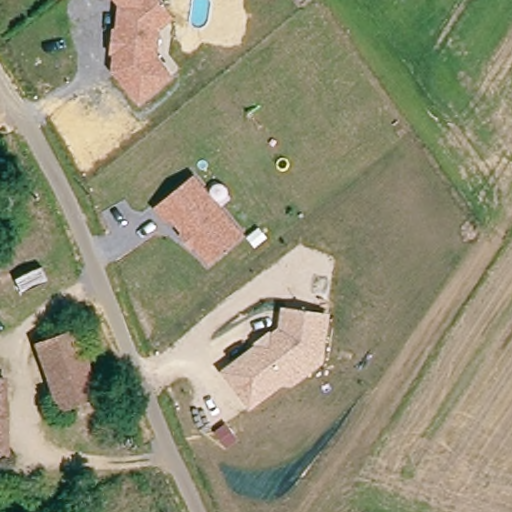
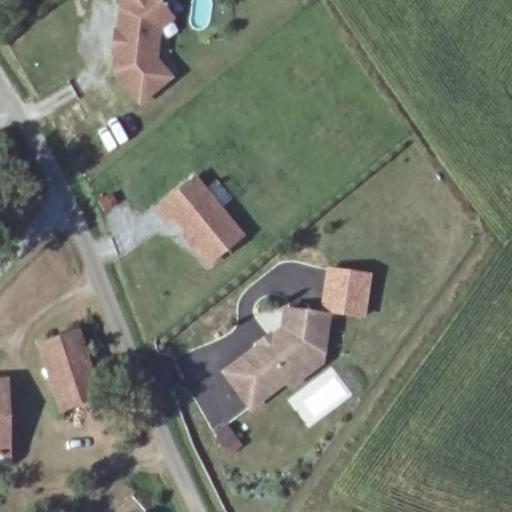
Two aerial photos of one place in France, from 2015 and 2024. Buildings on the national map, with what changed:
unchanged [(160,30),(158,56),(175,77),(139,104),(111,69),(113,53),(110,53),(112,26),(117,25),(119,4),(115,0),(158,0),(175,19),(160,30)]
unchanged [(193,245),(188,250),(177,237),(181,233),(172,219),(165,224),(154,209),(196,175),(224,211),(244,233),(206,263),(193,245)]
new [(330,313),(319,312),(326,268),(371,274),(365,319),(330,313)]
unchanged [(330,313),(325,364),(290,387),(287,383),(249,410),(220,371),(279,328),(281,307),(330,313)]
unchanged [(109,414),(93,421),(84,399),(59,409),(35,347),(70,333),(94,390),(99,389),(109,414)]
unchanged [(8,454),(0,455),(0,379),(2,379),(8,454)]

